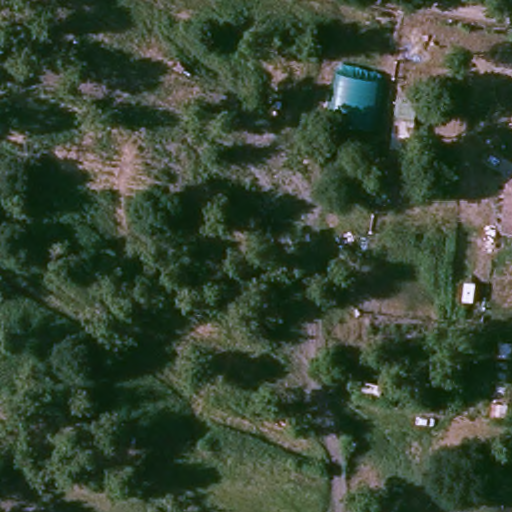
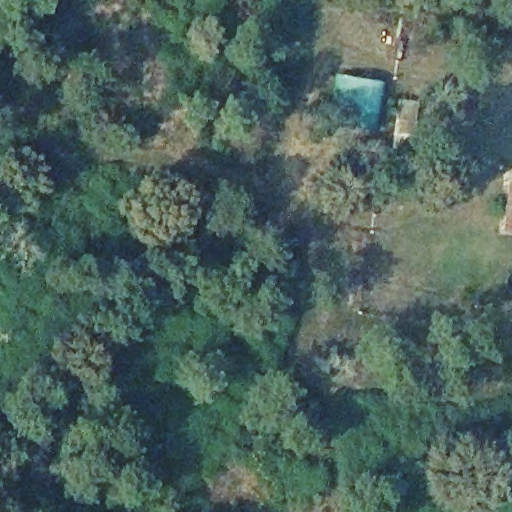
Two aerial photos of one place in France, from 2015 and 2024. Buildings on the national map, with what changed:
unchanged [(381,78),(372,142),(329,134),(338,74),(381,78)]
unchanged [(506,230),(511,185),(512,185),(512,231),(506,230)]

